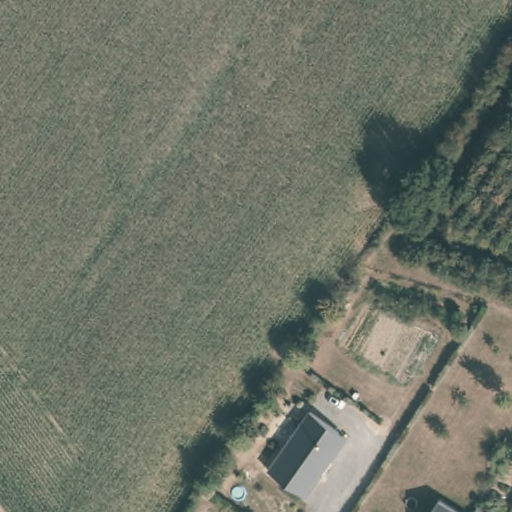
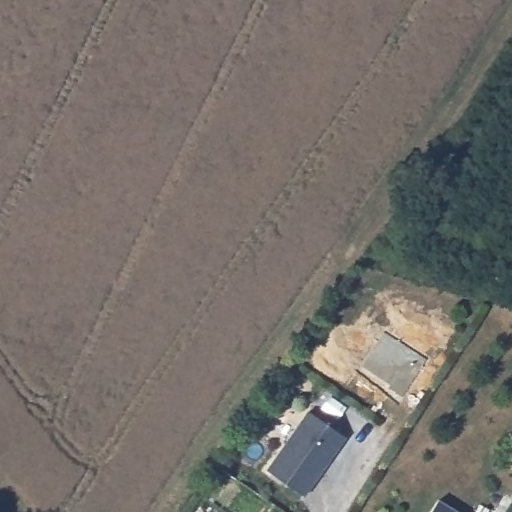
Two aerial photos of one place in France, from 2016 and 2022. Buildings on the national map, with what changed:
unchanged [(347,437),(327,463),(324,464),(320,469),(321,473),(303,497),(267,471),(310,410),(347,437)]
unchanged [(432,512),(440,500),(459,512),(432,512)]

